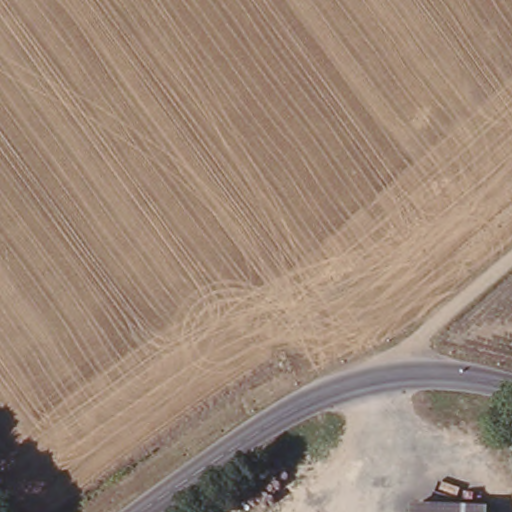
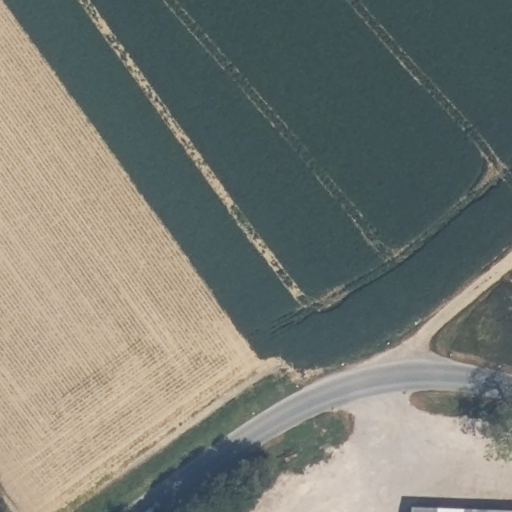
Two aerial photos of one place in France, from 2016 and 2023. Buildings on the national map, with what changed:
unchanged [(411,510),(448,512),(411,512),(411,510)]

